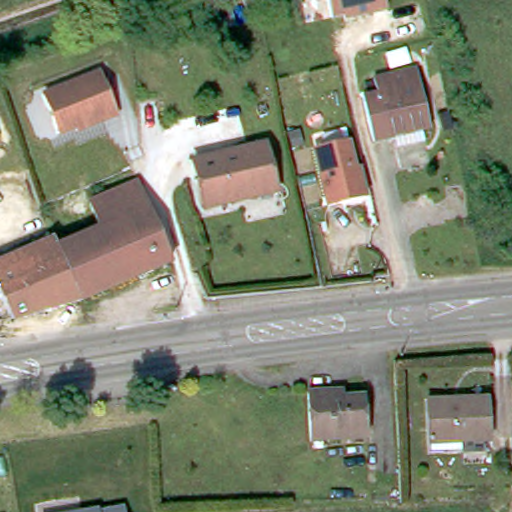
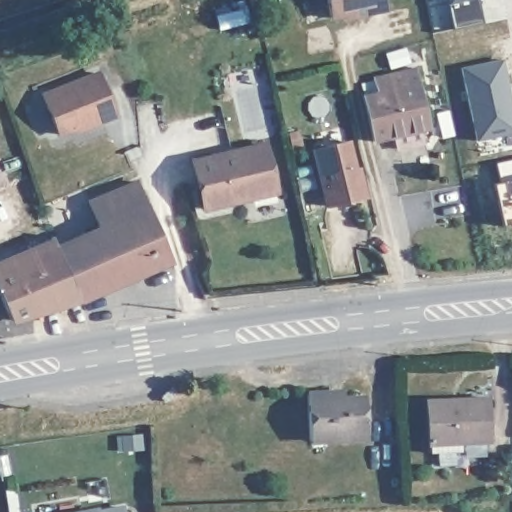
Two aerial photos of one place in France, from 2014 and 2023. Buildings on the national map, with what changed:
unchanged [(357,9),(356,5),(333,11),(331,0),(388,0),(389,1),(357,9)]
new [(452,29),(446,1),(449,0),(448,0),(478,0),(483,22),(452,29)]
unchanged [(392,143),(389,131),(369,135),(359,90),(374,87),(371,72),(388,69),(386,60),(413,55),(418,80),(425,124),(419,125),(422,137),(392,143)]
new [(512,108),(512,133),(476,140),(461,67),(502,59),(512,108)]
unchanged [(118,112),(88,125),(86,121),(60,133),(44,95),(101,70),(118,112)]
unchanged [(361,174),(364,191),(328,199),(316,141),(349,135),(355,162),(359,162),(361,174)]
unchanged [(190,160),(261,144),(270,184),(271,191),(201,207),(198,195),(190,160)]
unchanged [(144,200),(169,259),(74,295),(53,245),(98,226),(86,198),(136,180),(144,200)]
unchanged [(0,294),(0,258),(50,237),(53,245),(74,295),(9,314),(0,294)]
unchanged [(311,436),(308,393),(332,393),(342,392),(342,400),(366,400),(369,440),(332,442),(311,442),(311,436)]
unchanged [(492,441),(463,443),(463,451),(431,452),(431,442),(429,401),(490,398),(492,441)]
unchanged [(126,512),(74,512),(98,507),(125,504),(126,512)]

